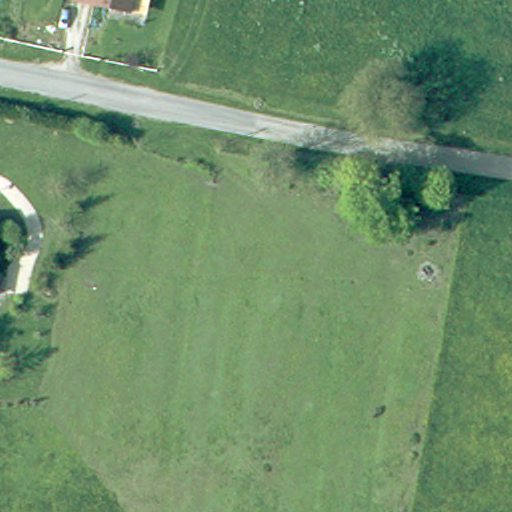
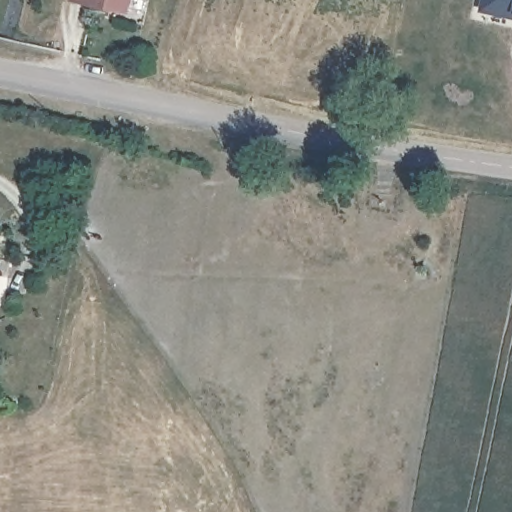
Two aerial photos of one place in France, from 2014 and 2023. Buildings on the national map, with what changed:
unchanged [(74,0),(132,0),(129,18),(92,10),(73,6),(74,0)]
new [(512,17),(482,11),(484,0),(512,0),(512,17)]

